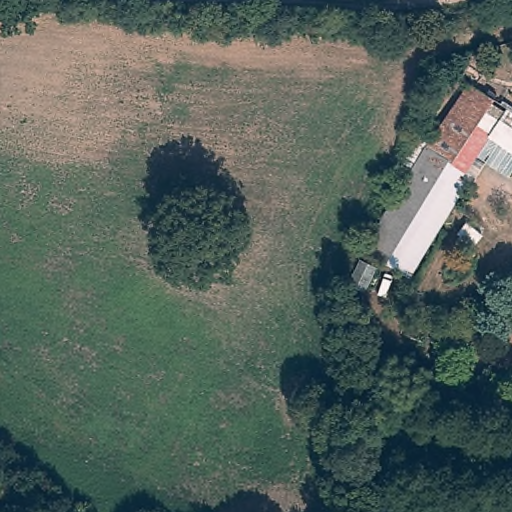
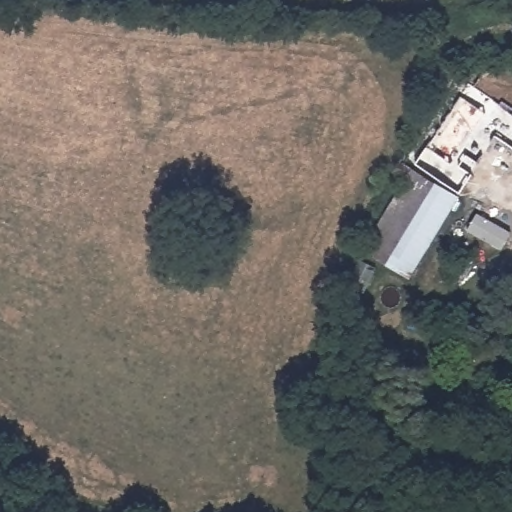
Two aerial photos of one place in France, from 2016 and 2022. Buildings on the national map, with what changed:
unchanged [(505,128),(486,160),(432,125),(456,75),(512,109),(512,133),(505,128)]
unchanged [(431,256),(377,225),(421,147),(432,125),(486,160),(482,168),(431,256)]

